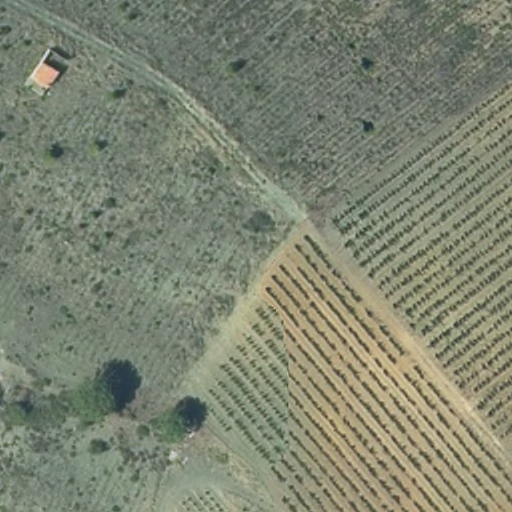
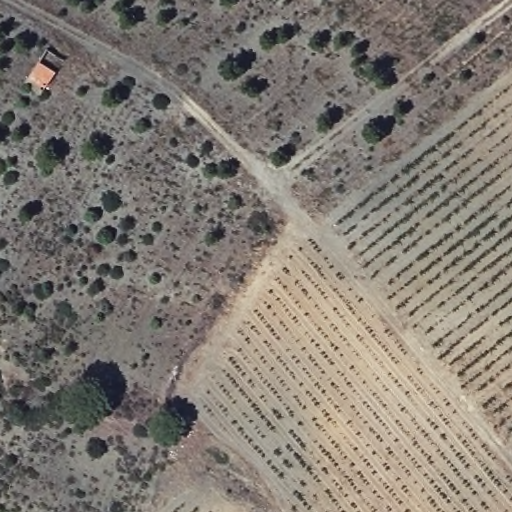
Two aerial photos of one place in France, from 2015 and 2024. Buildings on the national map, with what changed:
unchanged [(63,50),(43,85),(27,78),(49,41),(63,50)]

